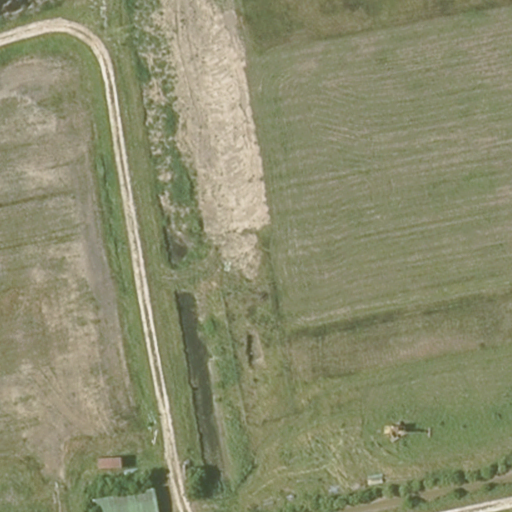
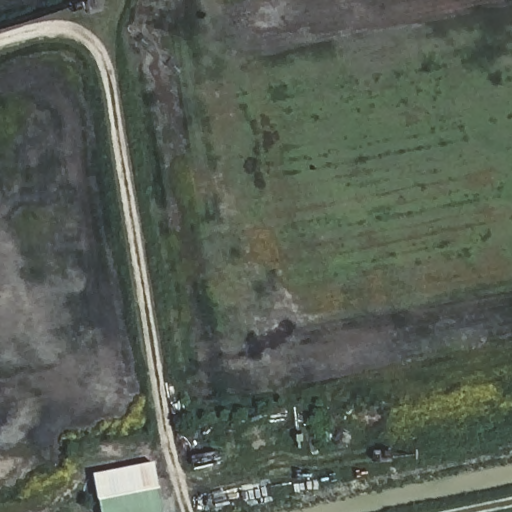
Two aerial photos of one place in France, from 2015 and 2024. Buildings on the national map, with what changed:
unchanged [(157,484),(162,512),(99,512),(95,496),(157,484)]

